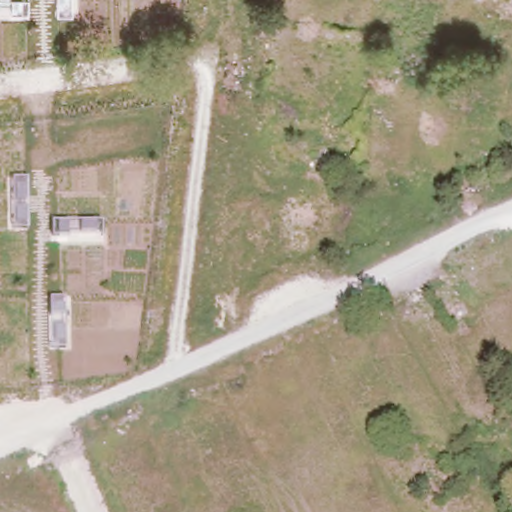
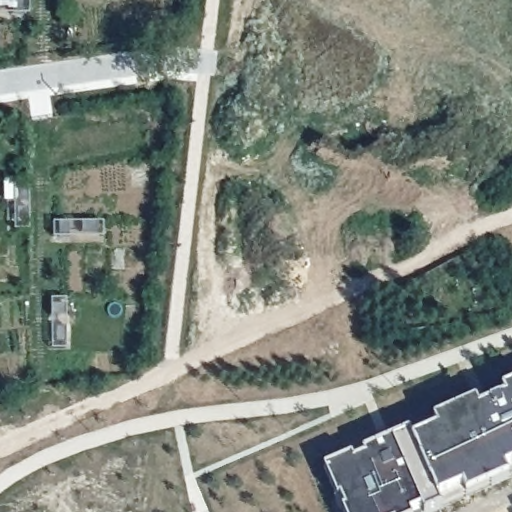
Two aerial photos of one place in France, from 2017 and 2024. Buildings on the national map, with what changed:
demolished [(154,3),(155,21),(134,18),(137,2),(154,3)]
demolished [(117,114),(116,131),(66,127),(67,110),(117,114)]
demolished [(336,164),(334,178),(302,174),(305,160),(336,164)]
demolished [(145,245),(139,304),(124,305),(131,244),(145,245)]
demolished [(470,316),(452,322),(440,298),(457,291),(470,316)]
new [(356,504),(351,494),(349,495),(335,464),(362,452),(365,456),(360,447),(371,443),(375,452),(374,447),(420,427),(469,406),(512,387),(512,477),(503,481),(453,502),(431,512),(356,512),(353,505),(356,504)]
demolished [(427,450),(437,470),(445,465),(451,480),(425,492),(411,458),(427,450)]
new [(351,494),(356,504),(350,506),(345,496),(351,494)]

